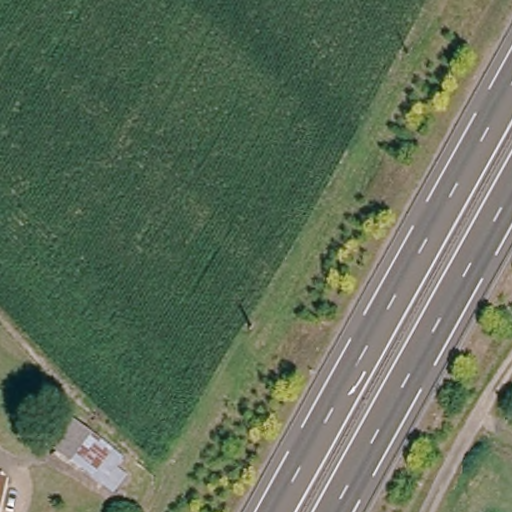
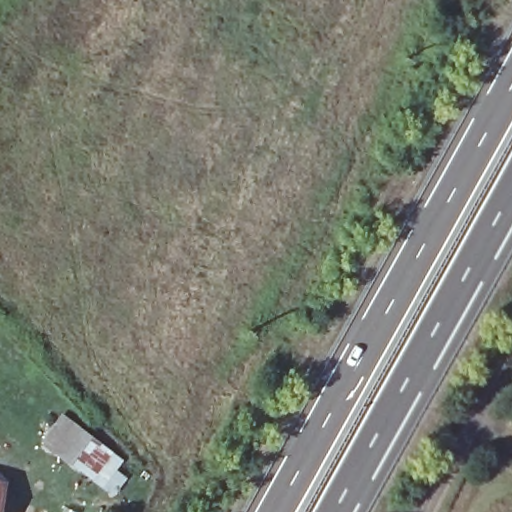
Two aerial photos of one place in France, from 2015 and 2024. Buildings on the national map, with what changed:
unchanged [(114,447),(93,477),(42,437),(61,413),(114,447)]
unchanged [(1,487),(0,493),(0,487),(1,487)]

